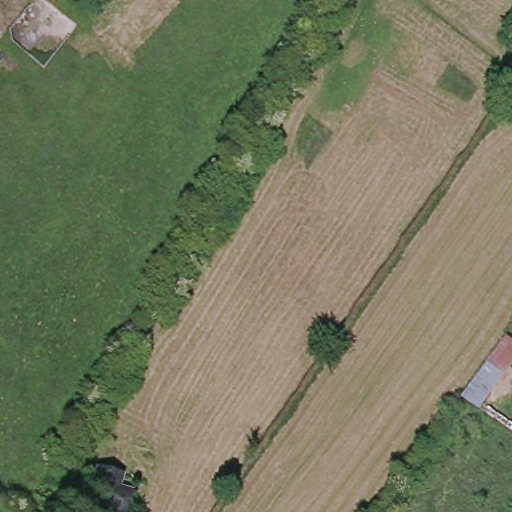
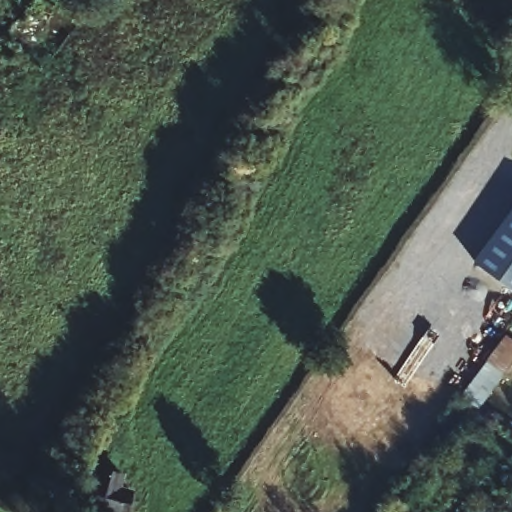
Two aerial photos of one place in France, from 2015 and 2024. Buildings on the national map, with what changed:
new [(476,263),(512,214),(512,290),(476,263)]
unchanged [(512,337),(512,370),(497,387),(477,377),(507,333),(512,337)]
unchanged [(108,478),(108,497),(117,497),(117,512),(81,512),(82,478),(108,478)]

